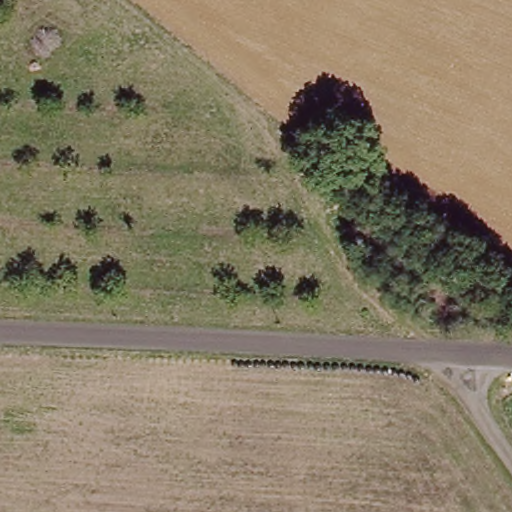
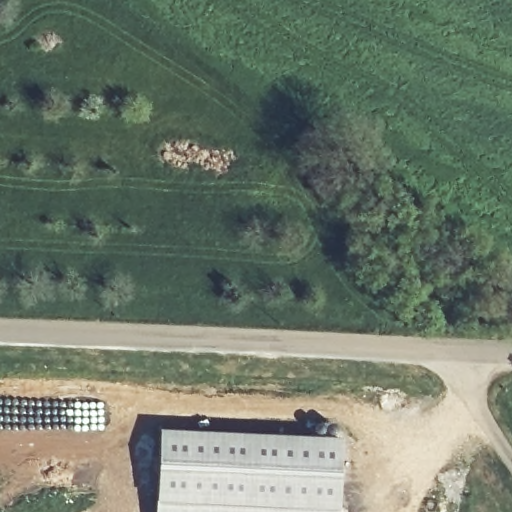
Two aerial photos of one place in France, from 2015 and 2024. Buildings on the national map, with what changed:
demolished [(287,60),(323,84),(307,106),(273,82),(287,60)]
new [(339,512),(156,512),(160,430),(315,437),(317,426),(320,425),(332,423),(335,425),(337,426),(337,428),(337,438),(343,438),(339,512)]

